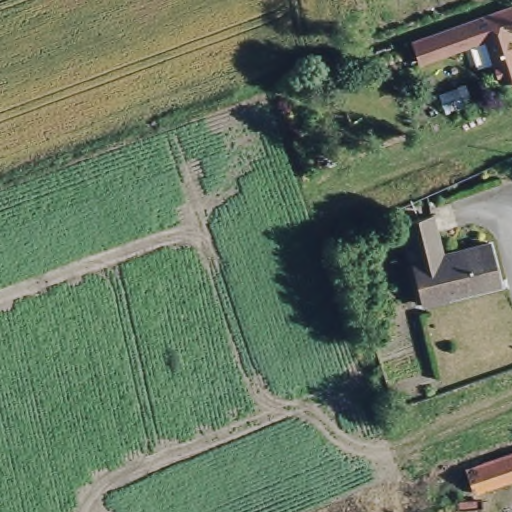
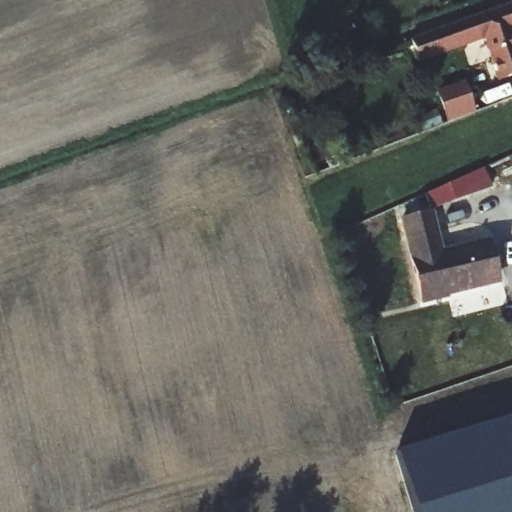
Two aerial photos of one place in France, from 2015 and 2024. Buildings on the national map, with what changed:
unchanged [(512,30),(510,31),(512,37),(512,78),(501,82),(487,39),(420,62),(414,42),(512,7),(512,30)]
new [(430,99),(456,89),(464,109),(439,119),(430,99)]
unchanged [(405,225),(432,216),(444,255),(492,243),(501,280),(450,292),(452,298),(425,305),(415,267),(405,225)]
new [(512,418),(512,512),(412,512),(394,455),(512,418)]

